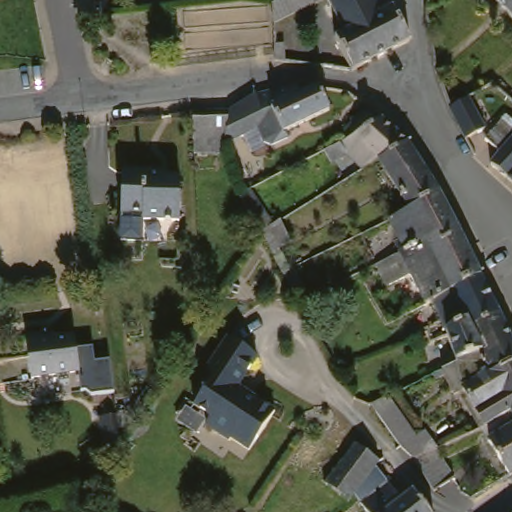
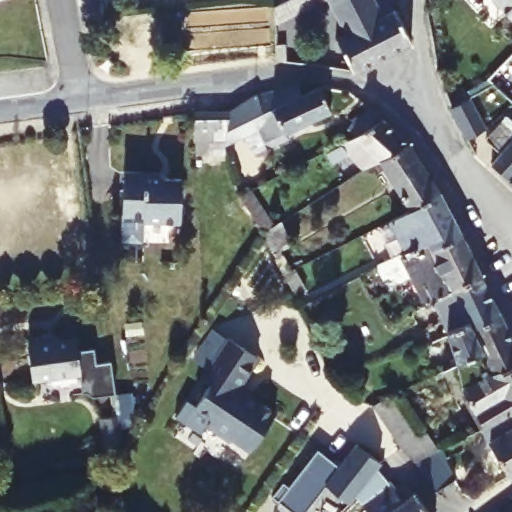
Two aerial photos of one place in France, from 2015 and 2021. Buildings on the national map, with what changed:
unchanged [(277,28),(277,15),(277,10),(286,4),(284,0),(317,0),(301,11),(277,28)]
unchanged [(402,22),(412,43),(350,71),(335,38),(343,33),(329,0),(375,0),(382,16),(405,5),(411,18),(402,22)]
unchanged [(512,0),(512,21),(492,0),(512,0)]
unchanged [(283,62),(275,61),(276,44),(285,45),(283,62)]
unchanged [(224,114),(260,94),(297,85),(300,94),(323,84),(341,116),(313,134),(306,120),(263,149),(251,134),(221,146),(187,154),(194,116),(224,114)]
unchanged [(482,128),(461,137),(445,103),(466,93),(482,128)]
unchanged [(362,109),(378,96),(390,108),(414,133),(383,151),(366,162),(357,145),(339,154),(333,142),(371,121),(362,109)]
unchanged [(495,153),(480,139),(496,123),(512,139),(512,187),(483,163),(495,153)]
unchanged [(414,133),(442,183),(411,199),(383,151),(414,133)]
unchanged [(158,174),(164,177),(181,179),(179,222),(145,220),(144,214),(124,213),(125,171),(158,174)]
unchanged [(411,199),(442,183),(465,231),(432,247),(426,234),(408,244),(391,210),(411,199)]
unchanged [(268,255),(263,246),(258,237),(237,200),(249,194),(268,229),(272,227),(285,246),(268,255)]
unchanged [(375,261),(408,244),(426,234),(432,247),(465,231),(485,274),(432,300),(427,303),(420,286),(413,272),(387,286),(375,261)]
unchanged [(485,274),(503,313),(437,342),(427,347),(420,331),(442,320),(432,300),(485,274)]
unchanged [(446,357),(437,342),(503,313),(512,332),(512,366),(477,385),(463,360),(458,351),(446,357)]
unchanged [(243,386),(278,411),(255,448),(206,414),(219,394),(201,376),(229,337),(261,358),(243,386)]
unchanged [(62,342),(77,341),(81,376),(34,381),(30,350),(34,350),(32,340),(55,338),(62,342)]
unchanged [(477,385),(512,366),(512,406),(510,407),(512,412),(512,416),(492,429),(472,386),(463,391),(451,367),(463,360),(477,385)]
unchanged [(431,497),(415,472),(374,405),(390,396),(419,447),(428,443),(436,459),(451,486),(431,497)]
unchanged [(512,406),(512,412),(510,407),(512,406)]
unchanged [(512,416),(512,479),(486,432),(492,429),(512,416)]
unchanged [(107,437),(109,454),(95,476),(91,439),(107,437)]
unchanged [(382,468),(376,475),(353,503),(347,510),(324,491),(339,471),(329,463),(346,440),(382,468)]
new [(339,471),(324,491),(308,512),(293,512),(272,497),(283,482),(289,487),(316,453),(329,463),(339,471)]
unchanged [(392,498),(402,491),(408,503),(412,500),(421,512),(360,512),(357,508),(357,507),(353,503),(376,475),(392,498)]

